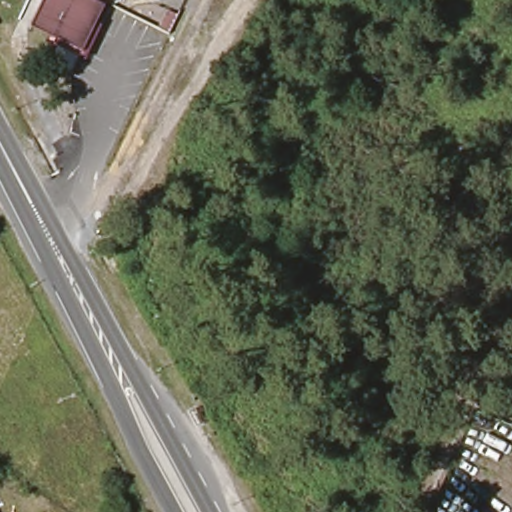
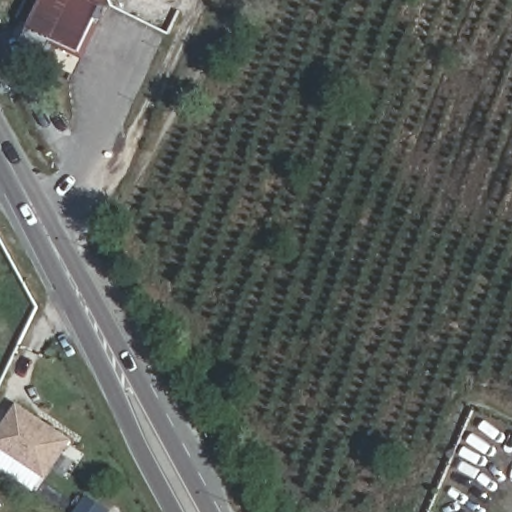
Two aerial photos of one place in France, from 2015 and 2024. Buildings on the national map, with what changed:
unchanged [(80,55),(29,28),(43,0),(86,0),(104,9),(80,55)]
new [(48,479),(0,448),(0,430),(19,402),(75,438),(48,479)]

